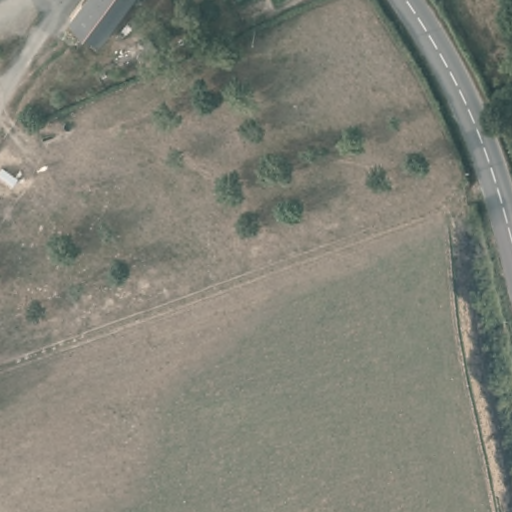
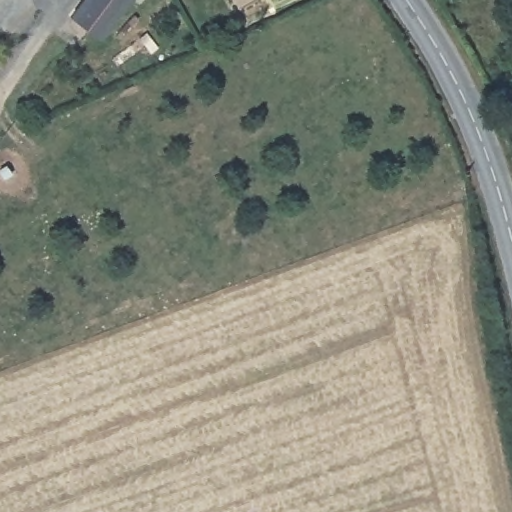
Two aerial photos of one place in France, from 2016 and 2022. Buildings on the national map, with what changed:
unchanged [(128,0),(102,34),(71,13),(80,0),(128,0)]

